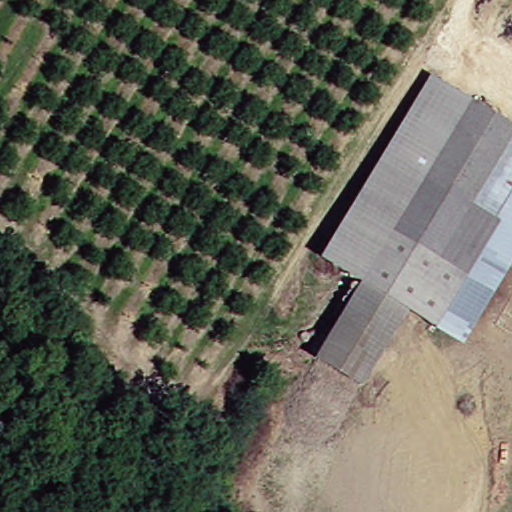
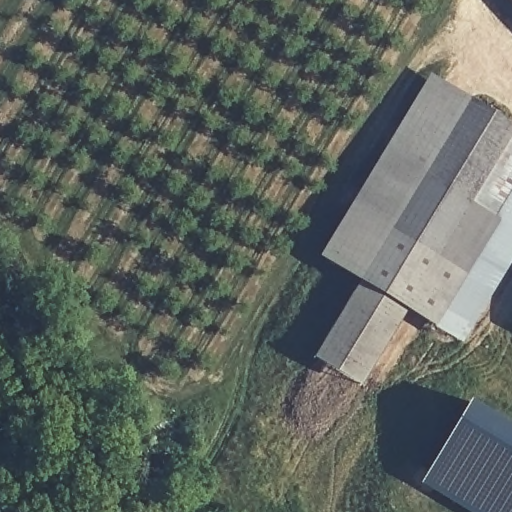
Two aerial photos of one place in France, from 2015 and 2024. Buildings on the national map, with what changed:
new [(512,5),(508,0),(512,0),(512,5)]
unchanged [(411,314),(360,283),(326,263),(434,86),(512,132),(512,261),(481,310),(461,343),(411,314)]
unchanged [(360,283),(411,314),(362,389),(312,358),(360,283)]
demolished [(512,326),(510,329),(491,318),(500,305),(512,313),(512,326)]
new [(512,427),(512,512),(467,512),(420,484),(470,402),(512,427)]

